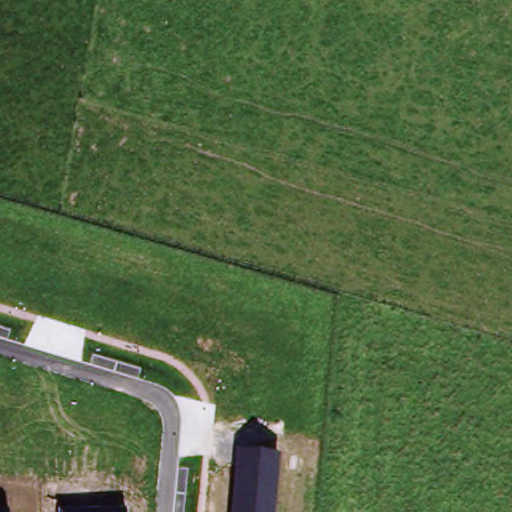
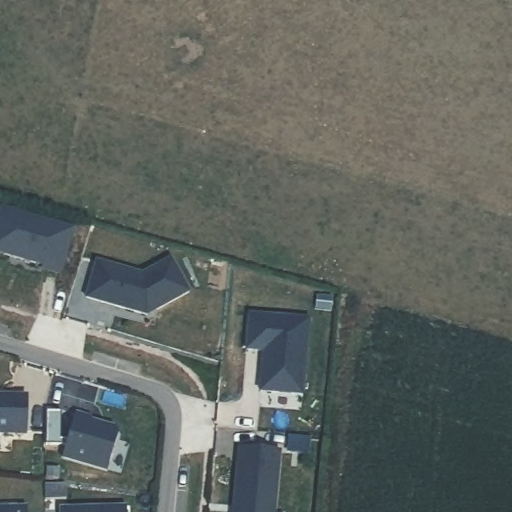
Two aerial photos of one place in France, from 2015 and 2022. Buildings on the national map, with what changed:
new [(71,224),(58,269),(43,264),(43,260),(0,248),(0,204),(71,224)]
new [(94,255),(141,269),(172,255),(188,290),(153,306),(152,303),(145,307),(143,311),(83,294),(94,255)]
new [(10,390),(10,393),(25,393),(24,425),(9,425),(9,428),(0,428),(0,390),(10,390)]
new [(73,408),(89,413),(88,416),(112,423),(115,429),(105,465),(59,452),(73,408)]
unchanged [(282,450),(275,512),(235,512),(241,446),(282,450)]
unchanged [(128,503),(127,512),(60,512),(60,505),(128,503)]
unchanged [(9,505),(9,512),(0,512),(0,506),(9,505)]

